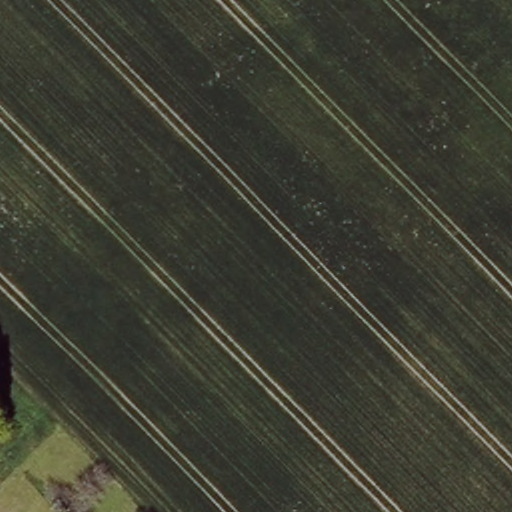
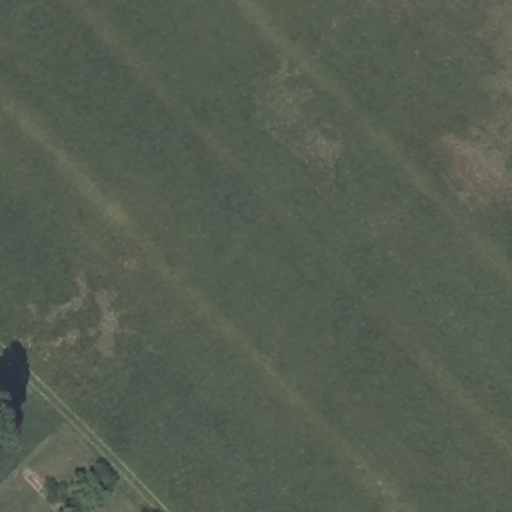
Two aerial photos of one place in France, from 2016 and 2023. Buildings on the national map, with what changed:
[]

